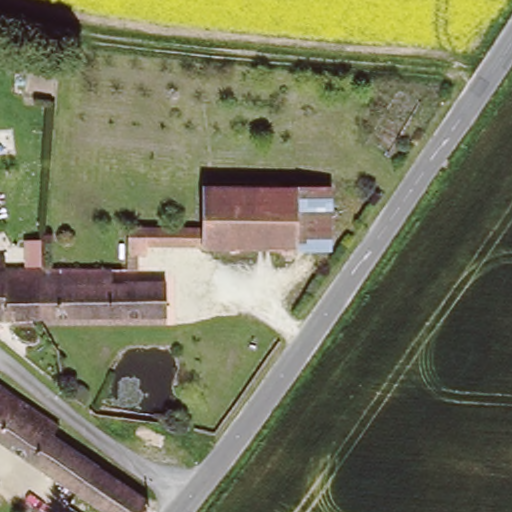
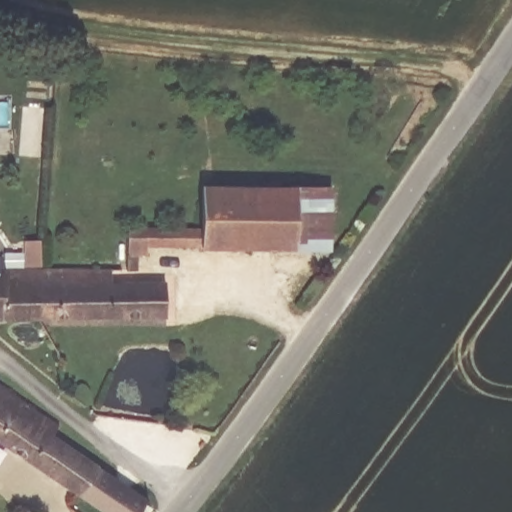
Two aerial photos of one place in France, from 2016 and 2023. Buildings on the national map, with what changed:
unchanged [(335,253),(145,244),(145,255),(140,255),(139,265),(132,265),(131,279),(119,278),(124,226),(203,228),(207,187),(340,196),(335,253)]
unchanged [(25,242),(40,242),(39,268),(24,268),(25,242)]
unchanged [(3,256),(2,273),(42,272),(39,316),(0,317),(0,256),(3,256)]
unchanged [(110,273),(110,283),(174,285),(173,320),(42,324),(56,270),(110,273)]
unchanged [(57,421),(50,433),(90,463),(83,472),(65,498),(58,509),(50,503),(61,487),(0,442),(0,383),(57,421)]
unchanged [(97,471),(146,507),(142,512),(95,512),(79,500),(97,471)]

